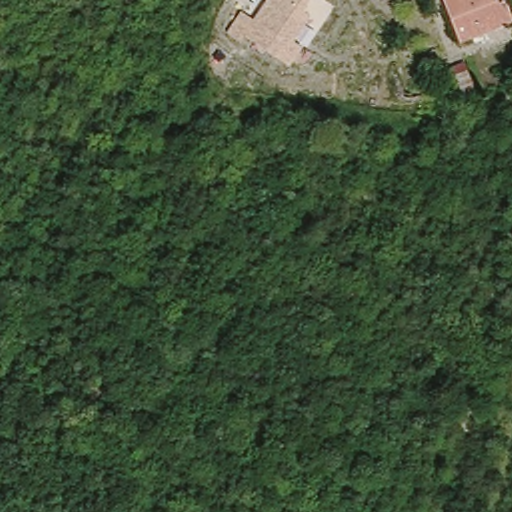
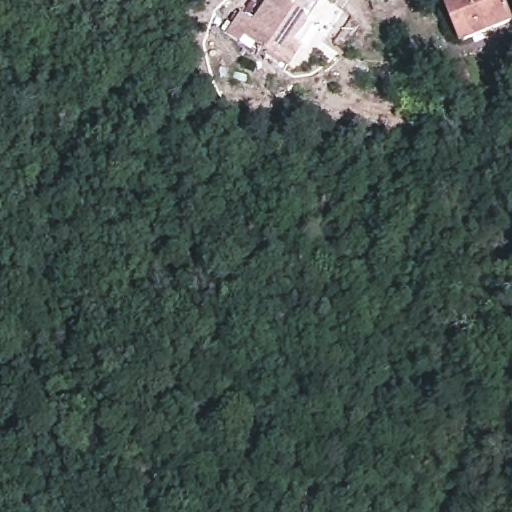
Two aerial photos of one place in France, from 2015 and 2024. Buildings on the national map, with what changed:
unchanged [(310,17),(295,44),(303,49),(290,67),(245,36),(241,41),(227,33),(240,11),(255,18),(267,0),(312,0),(303,14),(310,17)]
unchanged [(492,0),(500,0),(506,16),(453,36),(440,0),(490,0),(492,0)]

